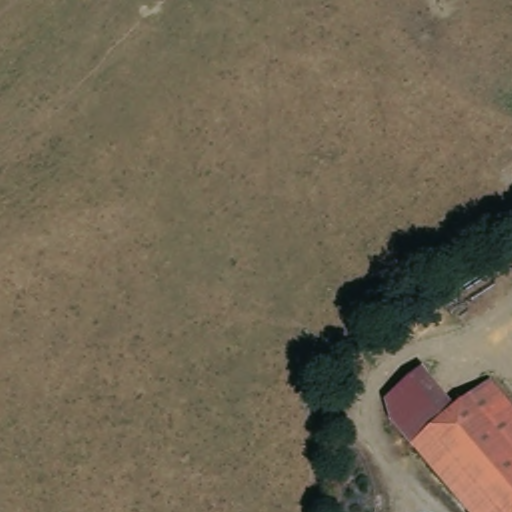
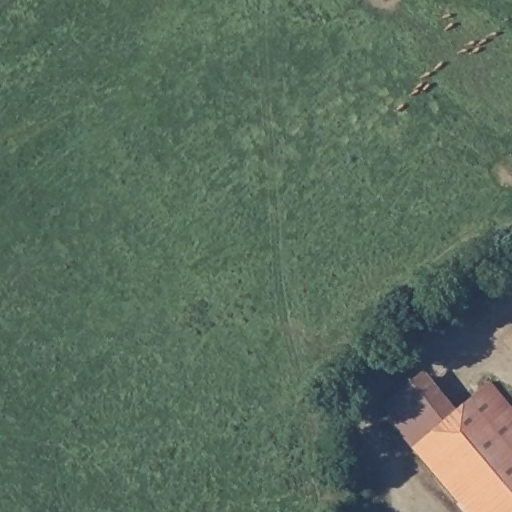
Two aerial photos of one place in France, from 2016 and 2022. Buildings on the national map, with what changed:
unchanged [(431,371),(461,407),(413,447),(393,422),(395,401),(431,371)]
unchanged [(413,447),(461,407),(490,381),(512,407),(512,512),(469,512),(413,447)]

